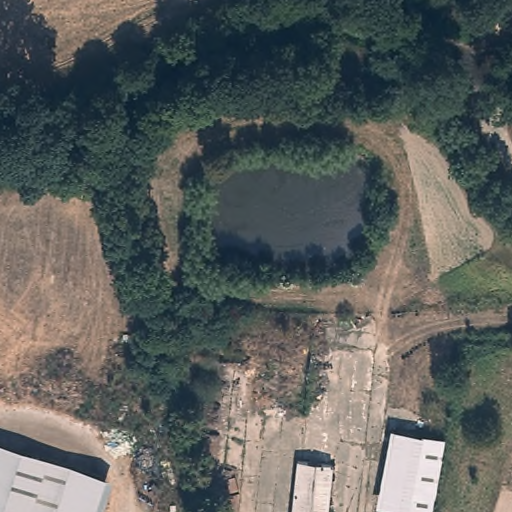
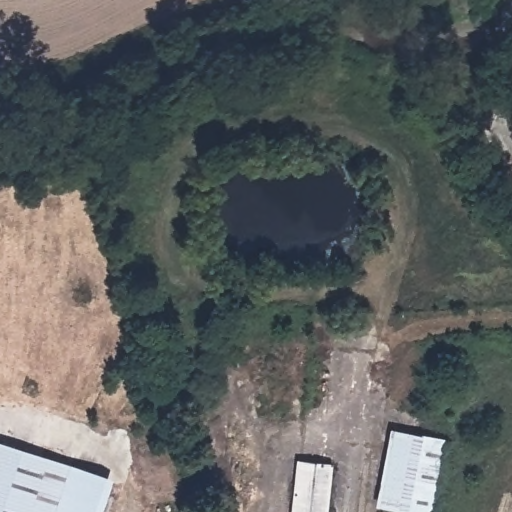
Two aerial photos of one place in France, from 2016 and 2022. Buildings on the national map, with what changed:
unchanged [(388,512),(382,511),(396,434),(423,439),(427,414),(450,417),(433,512),(388,512)]
unchanged [(98,475),(88,512),(0,512),(0,449),(98,475)]
unchanged [(335,512),(297,512),(307,472),(343,481),(335,512)]

